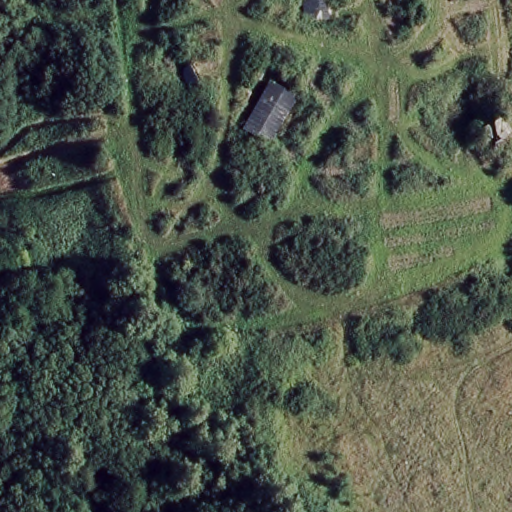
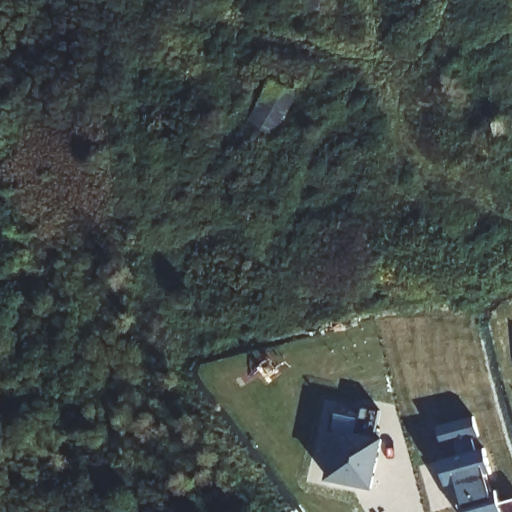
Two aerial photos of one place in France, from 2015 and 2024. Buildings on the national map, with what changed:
unchanged [(299,96),(269,144),(239,128),(268,79),(299,96)]
new [(371,437),(386,442),(373,490),(328,480),(337,433),(331,432),(336,412),(359,419),(363,408),(379,412),(371,437)]
new [(499,504),(512,500),(512,512),(465,512),(458,486),(446,488),(438,462),(458,456),(454,445),(442,447),(438,429),(473,419),(484,456),(499,504)]

